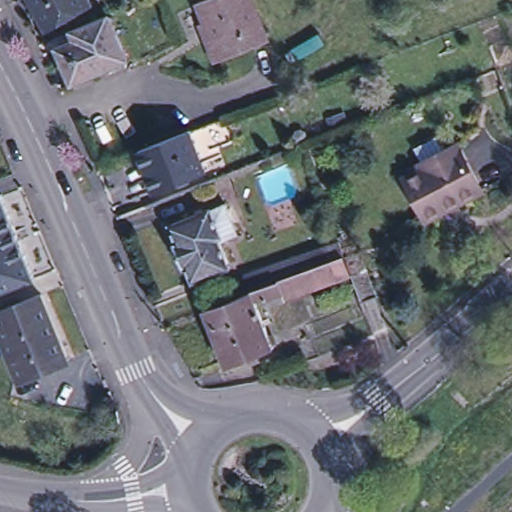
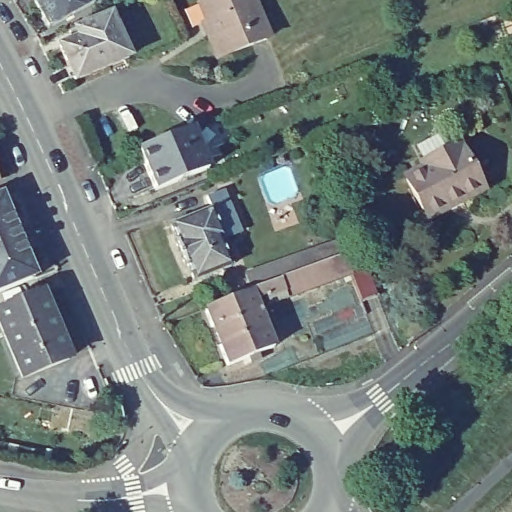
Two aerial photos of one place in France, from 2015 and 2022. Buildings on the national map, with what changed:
unchanged [(95,4),(49,30),(32,0),(93,0),(95,4)]
unchanged [(198,4),(208,0),(252,0),(268,39),(216,59),(207,37),(202,26),(207,24),(198,4)]
unchanged [(75,35),(110,20),(130,64),(75,87),(60,52),(79,45),(75,35)]
unchanged [(192,130),(205,162),(208,170),(157,191),(140,152),(192,130)]
unchanged [(462,148),(484,191),(428,219),(406,176),(425,166),(421,161),(442,150),(452,144),(462,148)]
unchanged [(1,192),(35,277),(0,291),(0,193),(1,192)]
unchanged [(221,234),(235,261),(198,280),(190,263),(187,264),(176,242),(178,241),(170,225),(210,205),(210,206),(226,198),(238,223),(223,231),(224,232),(221,234)]
unchanged [(257,295),(246,299),(265,347),(218,366),(196,311),(243,292),(242,291),(236,276),(330,242),(335,257),(352,251),(368,296),(351,302),(341,275),(260,304),(257,295)]
unchanged [(42,292),(68,358),(21,377),(0,324),(0,309),(42,292)]

